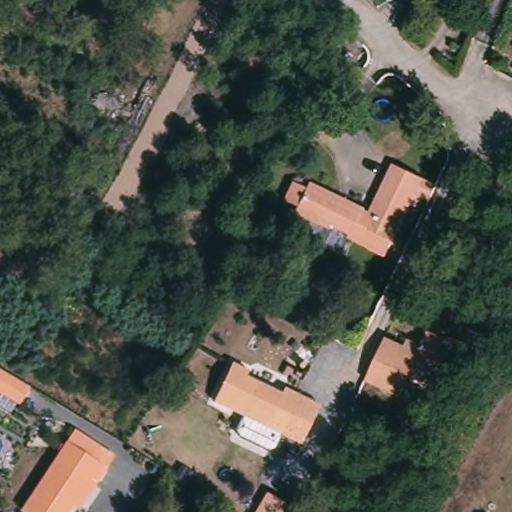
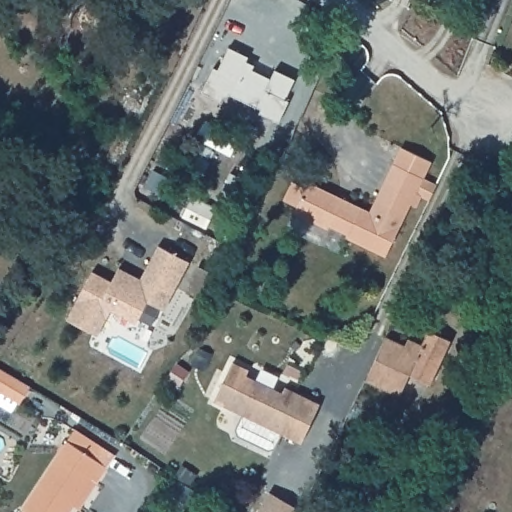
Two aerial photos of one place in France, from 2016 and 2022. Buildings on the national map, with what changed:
unchanged [(436,197),(422,190),(393,255),(352,237),(354,234),(336,225),(335,229),(301,213),(303,207),(290,201),(297,183),(312,189),(314,183),(376,211),(398,161),(443,182),(436,197)]
new [(66,319),(92,270),(112,280),(117,267),(140,278),(157,244),(187,260),(165,310),(147,302),(137,322),(109,309),(96,334),(66,319)]
unchanged [(400,344),(402,339),(417,346),(423,331),(449,344),(427,388),(399,376),(390,394),(362,379),(381,338),(382,336),(400,344)]
unchanged [(304,439),(286,431),(217,397),(235,359),(251,367),(249,372),(285,389),(287,384),(305,392),(322,401),(304,439)]
unchanged [(21,400),(0,387),(0,364),(31,383),(21,400)]
unchanged [(83,488),(67,512),(21,512),(20,511),(62,447),(69,436),(107,461),(100,474),(89,491),(83,488)]
new [(262,508),(269,512),(259,512),(262,508)]

